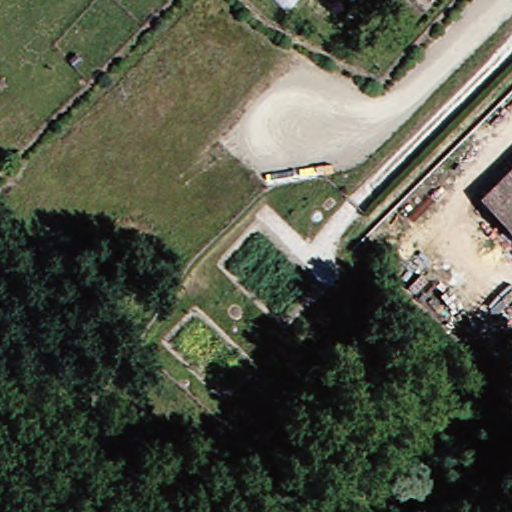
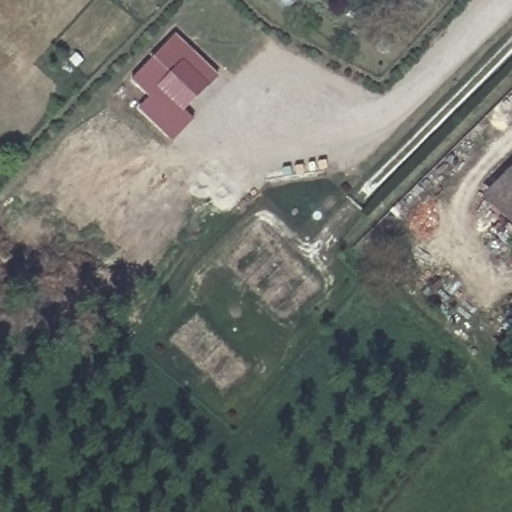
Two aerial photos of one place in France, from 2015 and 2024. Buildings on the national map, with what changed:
new [(138,109),(149,98),(131,81),(174,37),(215,77),(206,87),(181,112),(192,122),(172,142),(138,109)]
unchanged [(512,181),(512,201),(501,192),(512,181)]

